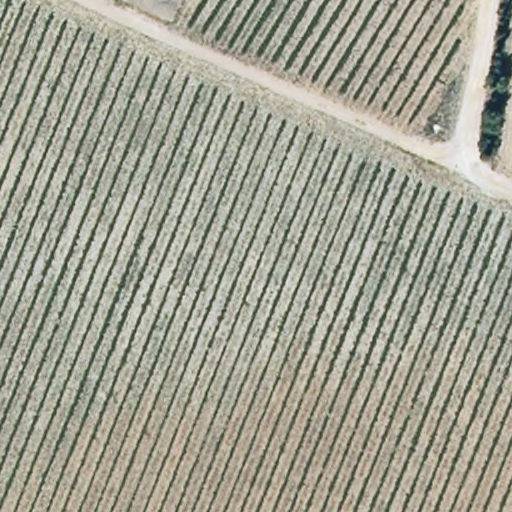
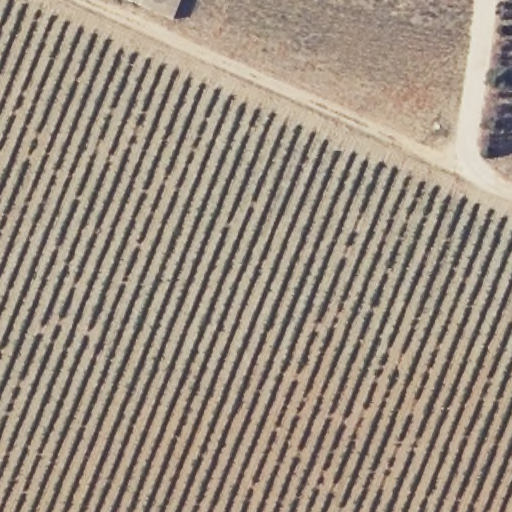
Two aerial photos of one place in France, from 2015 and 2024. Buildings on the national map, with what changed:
unchanged [(151,0),(178,0),(175,12),(151,0)]

